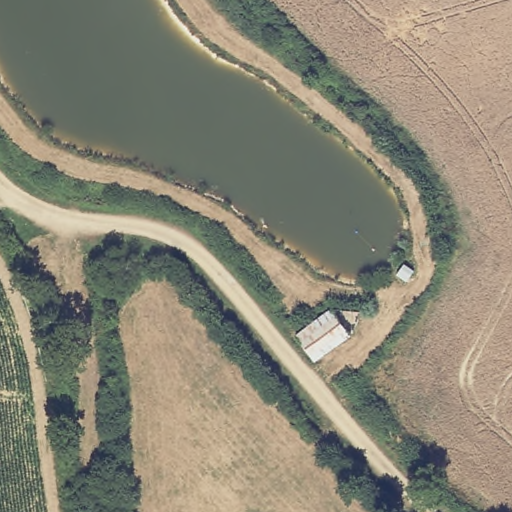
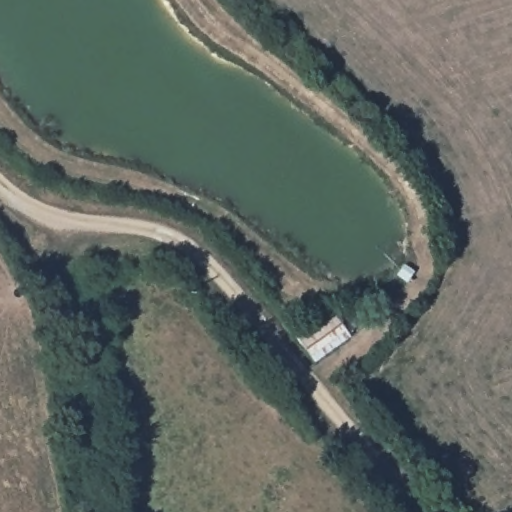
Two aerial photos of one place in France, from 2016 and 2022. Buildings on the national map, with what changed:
unchanged [(351,334),(313,361),(296,336),(332,311),(351,334)]

